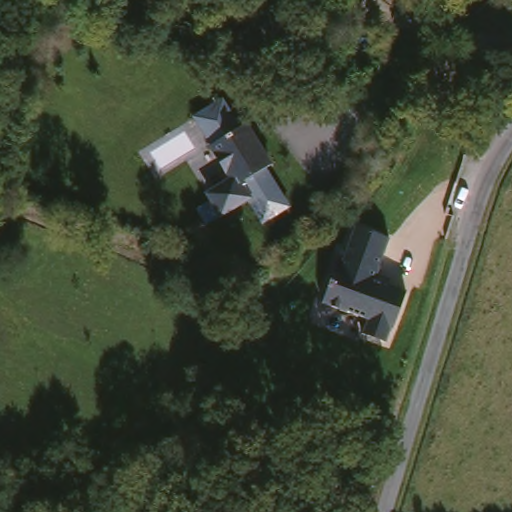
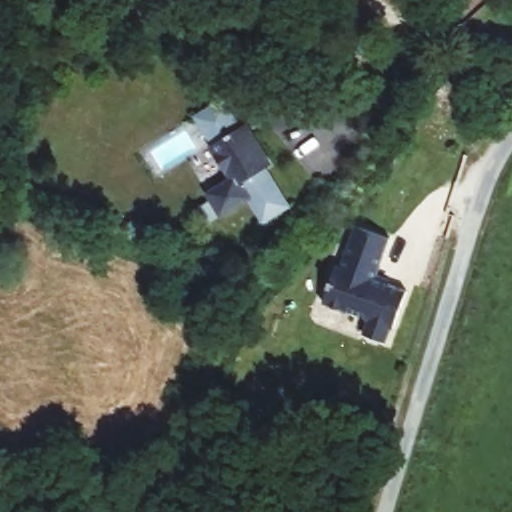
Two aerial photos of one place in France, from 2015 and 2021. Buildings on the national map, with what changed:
unchanged [(261,224),(257,219),(247,201),(219,218),(205,195),(228,181),(208,148),(211,146),(195,119),(221,103),(224,108),(237,130),(244,126),(268,167),(262,171),(282,204),(286,209),(261,224)]
unchanged [(356,333),(361,319),(319,304),(333,266),(337,267),(352,227),(387,239),(372,280),(401,291),(387,329),(385,328),(380,342),(356,333)]

